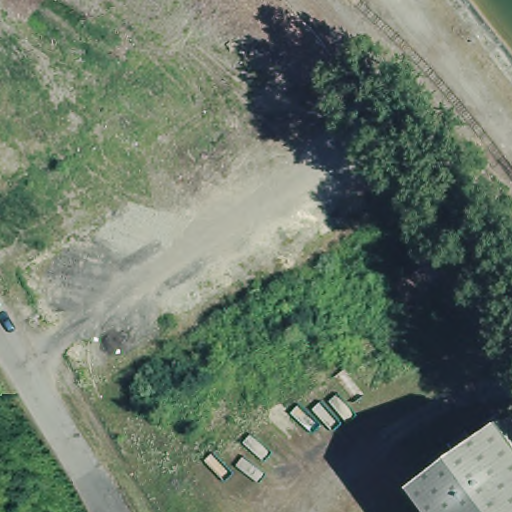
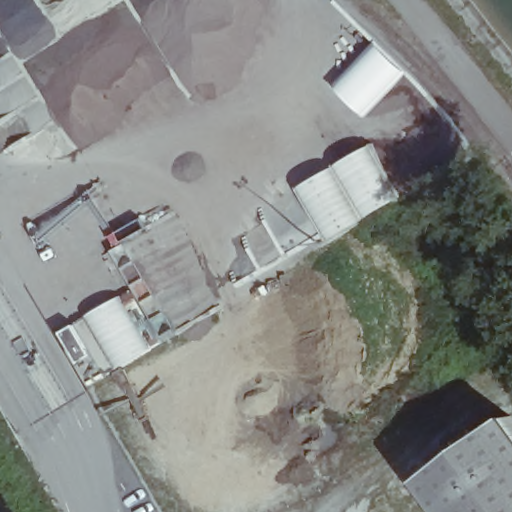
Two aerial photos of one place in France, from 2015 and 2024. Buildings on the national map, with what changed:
new [(376,44),(407,73),(365,116),(336,86),(376,44)]
new [(372,143),(403,198),(329,243),(296,188),(372,143)]
new [(120,295),(151,349),(115,370),(112,365),(104,369),(99,358),(100,358),(103,362),(108,359),(84,317),(120,295)]
new [(77,322),(96,352),(79,363),(60,332),(77,322)]
unchanged [(512,416),(512,417),(512,512),(444,512),(419,471),(512,416)]

